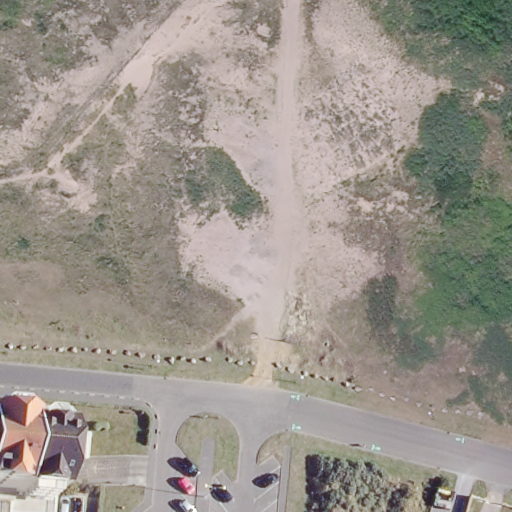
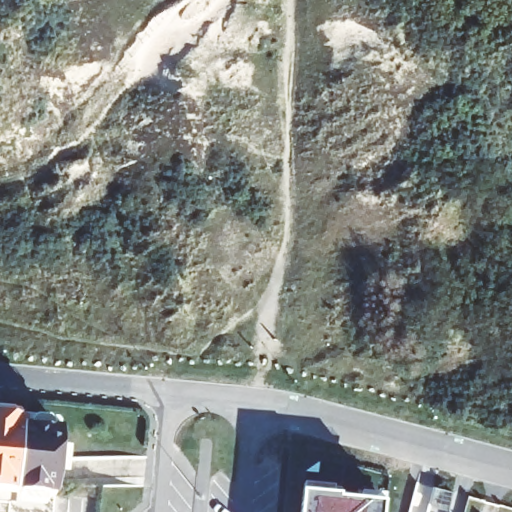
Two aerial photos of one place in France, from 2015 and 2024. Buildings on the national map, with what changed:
unchanged [(52,416),(46,481),(4,477),(2,491),(0,491),(0,411),(10,412),(52,416)]
new [(305,486),(335,489),(334,496),(384,500),(382,512),(303,512),(305,486)]
new [(454,495),(449,512),(446,512),(432,509),(437,491),(454,495)]

